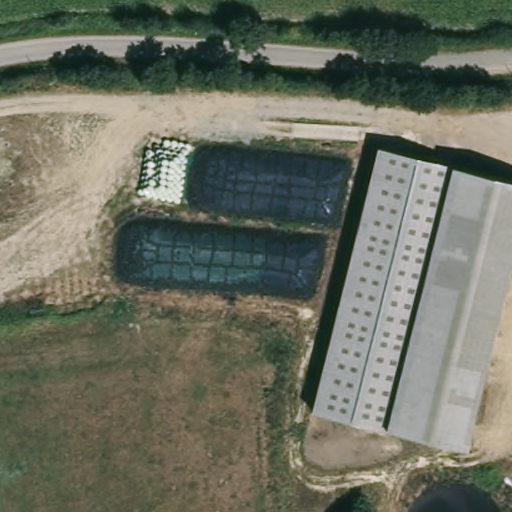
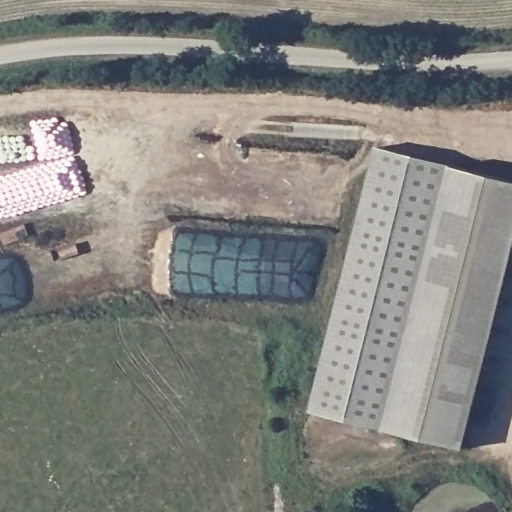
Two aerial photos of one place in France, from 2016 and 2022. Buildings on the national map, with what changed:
unchanged [(512,178),(512,284),(469,451),(312,411),(378,144),(512,178)]

